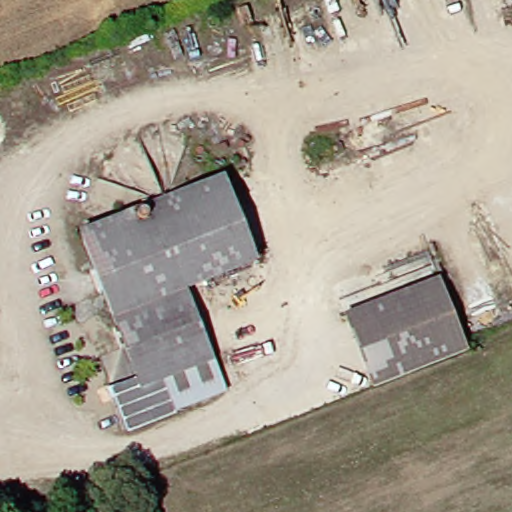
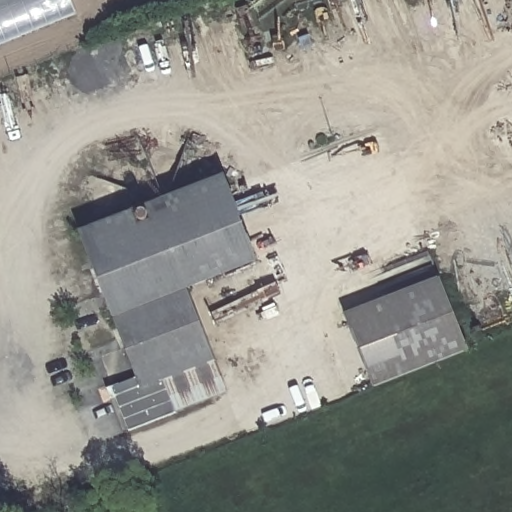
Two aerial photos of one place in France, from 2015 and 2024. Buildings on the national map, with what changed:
new [(0,0),(69,0),(74,13),(0,43),(0,0)]
unchanged [(152,379),(167,415),(120,432),(106,393),(133,381),(76,234),(207,184),(240,262),(175,286),(201,359),(152,379)]
unchanged [(331,314),(427,279),(457,354),(357,389),(331,314)]
unchanged [(215,394),(167,415),(152,379),(201,359),(215,394)]

